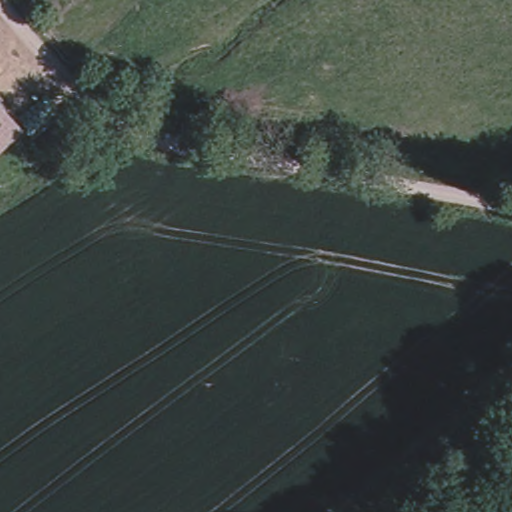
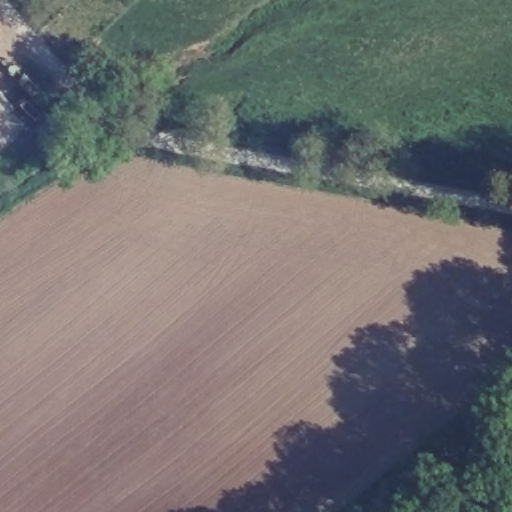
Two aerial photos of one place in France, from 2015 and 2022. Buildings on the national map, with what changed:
unchanged [(0,153),(0,112),(20,134),(0,153)]

